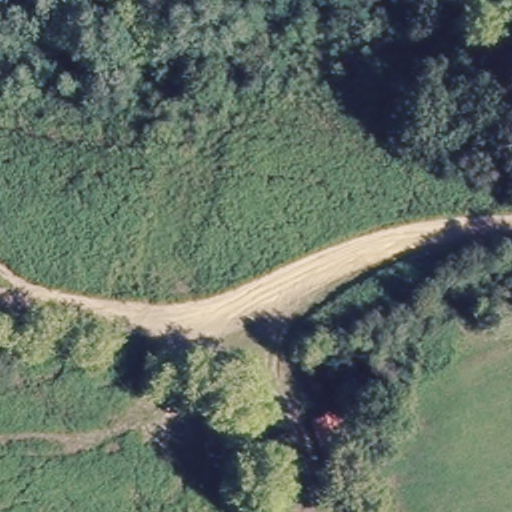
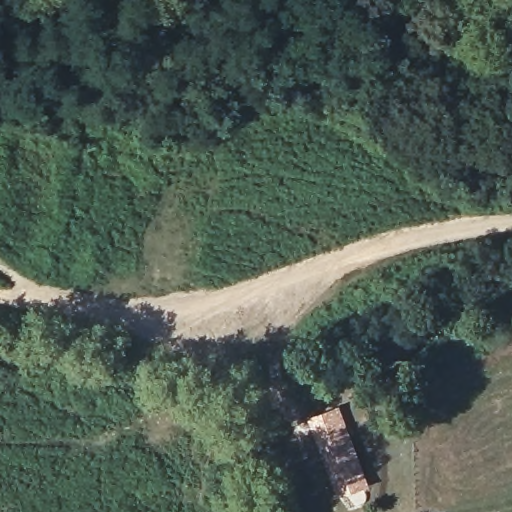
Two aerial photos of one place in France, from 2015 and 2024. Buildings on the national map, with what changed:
unchanged [(335,488),(312,423),(345,412),(366,477),(335,488)]

